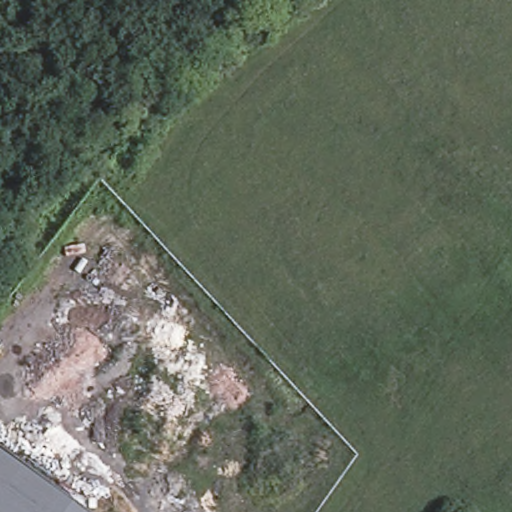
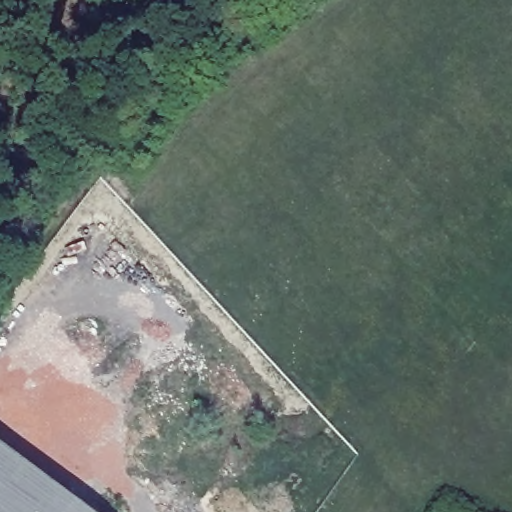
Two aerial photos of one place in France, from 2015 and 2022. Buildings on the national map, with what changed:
unchanged [(90,512),(0,512),(0,445),(90,512)]

